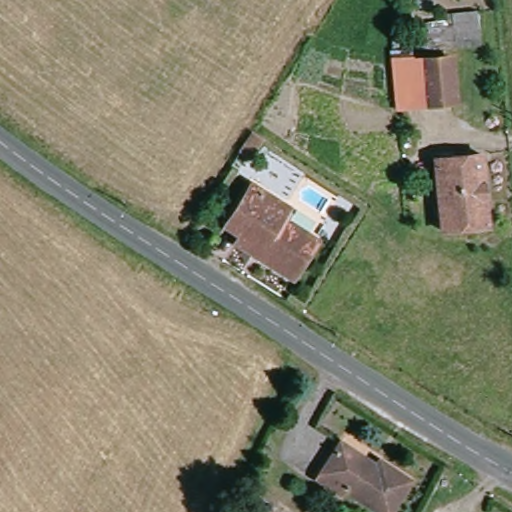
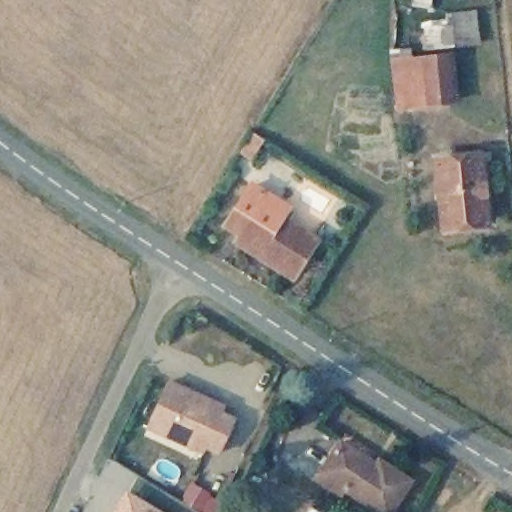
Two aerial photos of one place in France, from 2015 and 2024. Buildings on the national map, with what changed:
unchanged [(481,44),(459,46),(456,14),(478,12),(481,44)]
unchanged [(420,107),(401,108),(395,51),(414,49),(415,59),(420,107)]
unchanged [(455,103),(420,107),(415,59),(451,56),(455,103)]
unchanged [(248,157),(240,151),(251,135),(259,141),(248,157)]
unchanged [(487,226),(440,231),(433,159),(480,154),(487,226)]
unchanged [(240,236),(225,227),(250,185),(286,207),(280,218),(316,240),(293,277),(260,257),(236,243),(240,236)]
new [(225,407),(222,413),(235,419),(218,456),(205,450),(202,456),(145,429),(167,379),(225,407)]
unchanged [(377,512),(345,492),(342,498),(315,481),(337,444),(374,467),(377,462),(408,481),(389,512),(377,512)]
new [(114,512),(126,491),(161,512),(114,512)]

